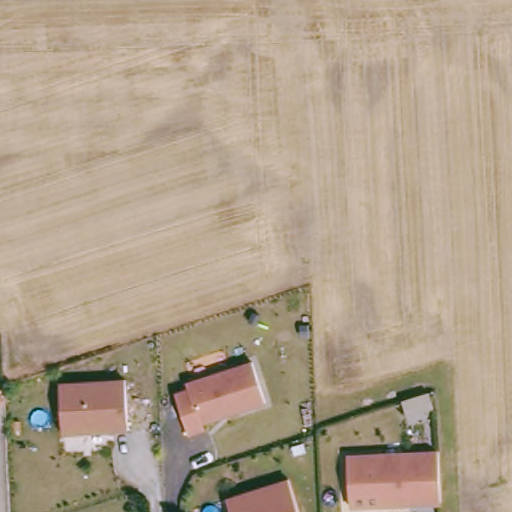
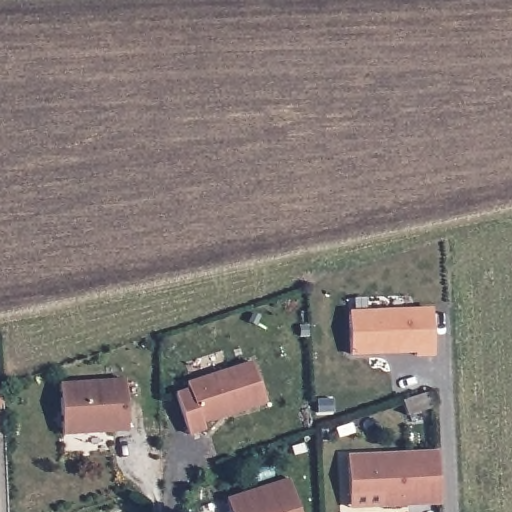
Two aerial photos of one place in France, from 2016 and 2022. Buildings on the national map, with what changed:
new [(415,353),(351,355),(349,310),(432,306),(434,356),(415,357),(415,353)]
unchanged [(248,361),(262,402),(200,422),(201,428),(187,433),(174,392),(186,388),(185,382),(248,361)]
unchanged [(130,382),(133,432),(119,433),(100,435),(99,429),(81,430),(75,437),(55,438),(51,388),(115,383),(130,382)]
unchanged [(432,406),(405,415),(400,400),(427,390),(432,406)]
unchanged [(438,501),(382,505),(381,490),(348,492),(346,455),(436,450),(438,501)]
unchanged [(291,482),(298,512),(233,512),(229,496),(291,482)]

